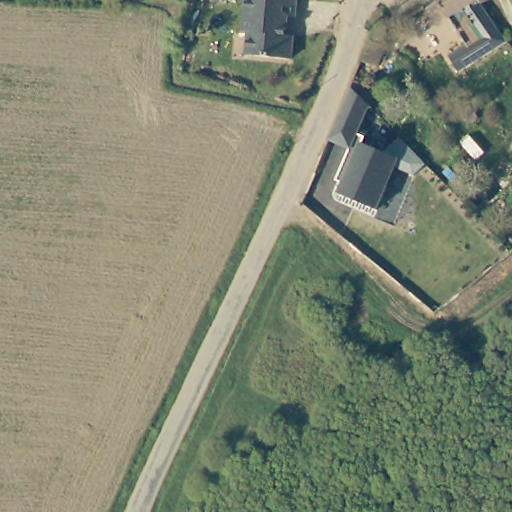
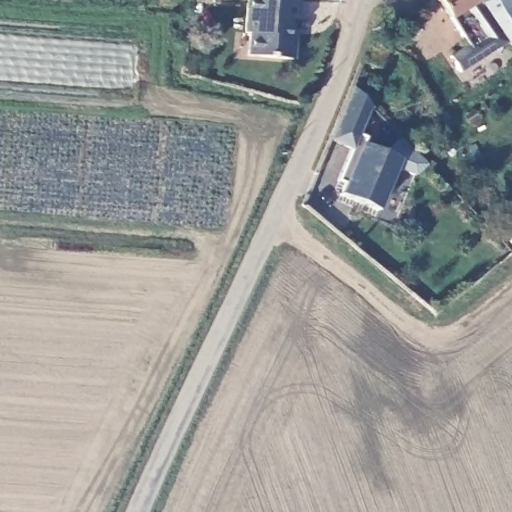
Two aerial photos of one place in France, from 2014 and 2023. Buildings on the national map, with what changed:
unchanged [(295,17),(287,17),(286,36),(292,36),(291,60),(247,56),(249,32),(242,32),(245,0),(291,0),(296,1),(295,17)]
unchanged [(487,17),(499,34),(475,50),(461,31),(468,26),(467,22),(472,20),(462,6),(447,14),(437,0),(478,0),(487,17)]
unchanged [(376,25),(388,27),(382,44),(387,46),(379,66),(362,59),(376,25)]
unchanged [(372,106),(361,132),(368,136),(366,142),(388,151),(401,136),(427,162),(416,174),(392,164),(384,183),(388,185),(379,209),(342,194),(348,178),(340,175),(351,147),(329,139),(331,134),(351,85),(372,106)]

